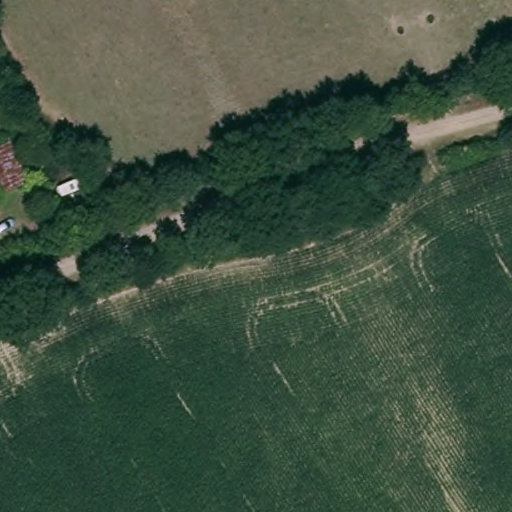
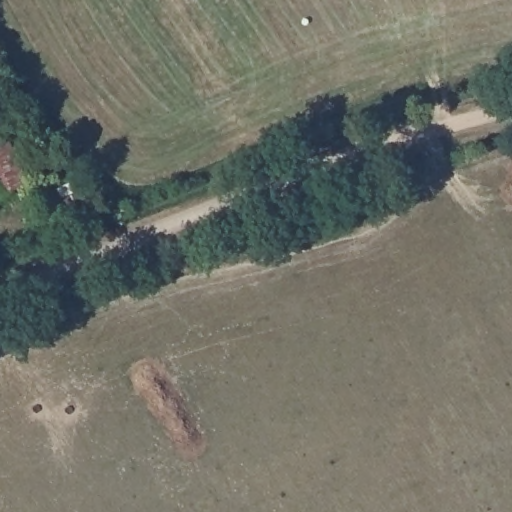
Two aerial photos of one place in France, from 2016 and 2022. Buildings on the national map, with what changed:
unchanged [(26,183),(0,196),(0,141),(4,139),(26,183)]
unchanged [(64,210),(72,230),(51,238),(43,218),(64,210)]

